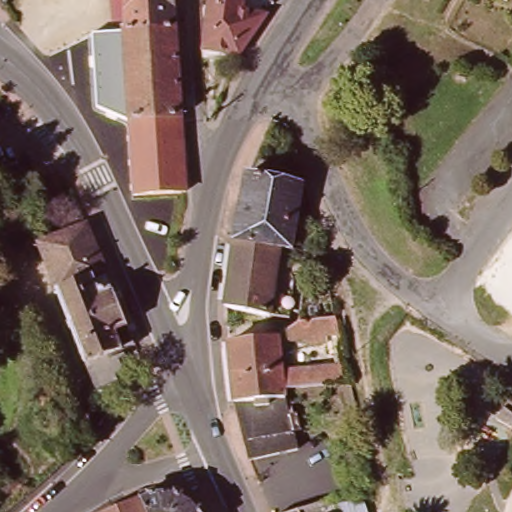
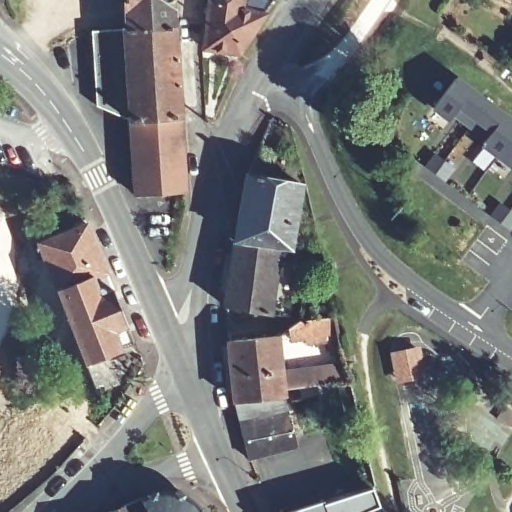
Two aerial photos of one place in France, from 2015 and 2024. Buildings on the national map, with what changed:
unchanged [(126,27),(124,0),(174,0),(175,23),(126,27)]
unchanged [(225,0),(258,0),(257,6),(281,12),(256,52),(219,44),(225,0)]
unchanged [(135,201),(132,130),(132,118),(96,103),(90,29),(126,27),(175,23),(188,197),(135,201)]
new [(470,126),(455,115),(449,122),(432,109),(458,75),(490,99),(470,126)]
new [(481,147),(487,139),(470,126),(490,99),(512,117),(512,149),(502,163),(481,147)]
new [(512,149),(512,170),(502,163),(512,149)]
unchanged [(308,182),(298,246),(285,244),(241,236),(255,172),(308,182)]
unchanged [(154,339),(141,345),(145,354),(137,356),(142,369),(134,372),(136,380),(115,389),(55,241),(104,220),(154,339)]
unchanged [(297,307),(277,304),(276,310),(232,305),(241,236),(285,244),(282,274),(301,276),(297,307)]
demolished [(512,280),(512,287),(509,284),(512,280)]
unchanged [(307,403),(305,394),(292,396),(293,399),(242,405),(235,344),(286,339),(305,323),(342,320),(357,384),(323,390),(324,400),(307,403)]
new [(416,350),(421,376),(397,381),(392,355),(416,350)]
unchanged [(293,399),(307,449),(257,462),(242,405),(293,399)]
new [(323,501),(324,504),(373,488),(380,507),(367,512),(291,512),(323,501)]
unchanged [(149,495),(159,491),(168,489),(185,491),(199,497),(211,506),(216,512),(156,512),(149,495)]
unchanged [(149,495),(156,512),(112,512),(149,495)]
demolished [(312,506),(314,512),(296,512),(312,506)]

